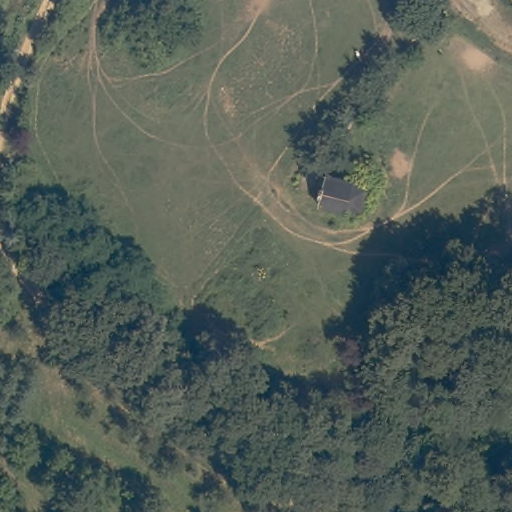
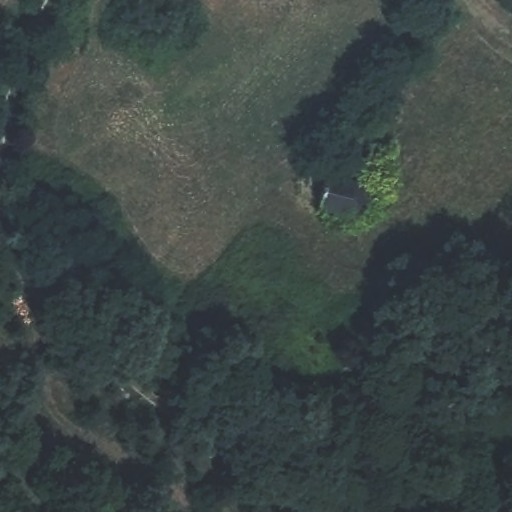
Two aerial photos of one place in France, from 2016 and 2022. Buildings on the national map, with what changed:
unchanged [(328,174),(360,182),(370,193),(367,204),(357,211),(345,211),(320,205),(328,174)]

